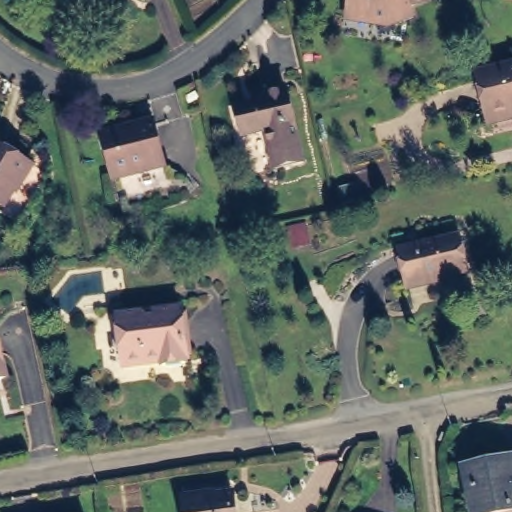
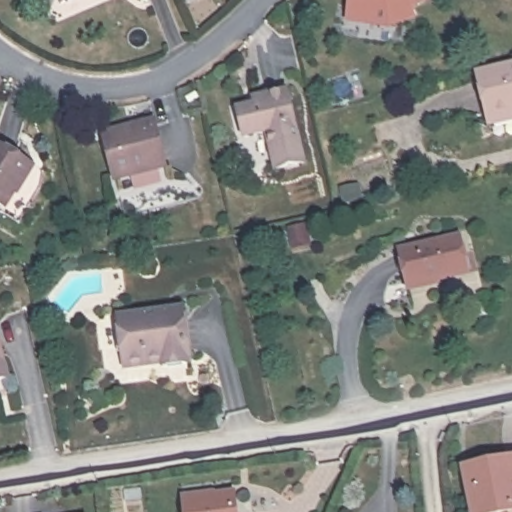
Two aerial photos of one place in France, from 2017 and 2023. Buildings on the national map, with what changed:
unchanged [(60,1),(60,0),(63,0),(60,1)]
unchanged [(340,9),(342,0),(413,0),(415,6),(398,12),(402,24),(386,30),(365,26),(364,29),(352,27),(338,24),(340,9)]
unchanged [(512,105),(503,107),(493,68),(512,64),(512,105)]
unchanged [(306,164),(281,170),(272,135),(248,141),(241,114),(257,110),(255,102),(267,99),(290,93),(306,164)]
unchanged [(195,94),(200,101),(188,108),(184,102),(195,94)]
unchanged [(115,175),(105,134),(125,129),(153,122),(155,127),(163,164),(115,175)]
unchanged [(1,146),(37,169),(11,210),(0,203),(0,147),(1,146)]
unchanged [(456,235),(465,271),(460,272),(405,285),(397,249),(451,236),(456,235)]
unchanged [(182,310),(189,360),(185,360),(186,367),(165,370),(163,362),(126,367),(121,318),(182,310)]
unchanged [(11,380),(0,383),(0,338),(11,380)]
unchanged [(512,507),(488,512),(479,512),(470,470),(512,461),(512,507)]
unchanged [(228,512),(180,512),(178,501),(225,493),(228,512)]

